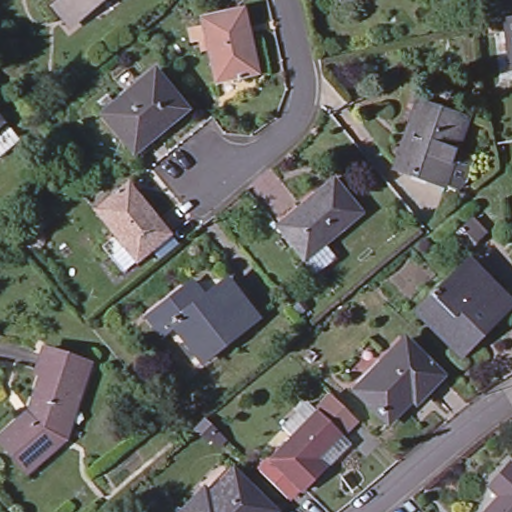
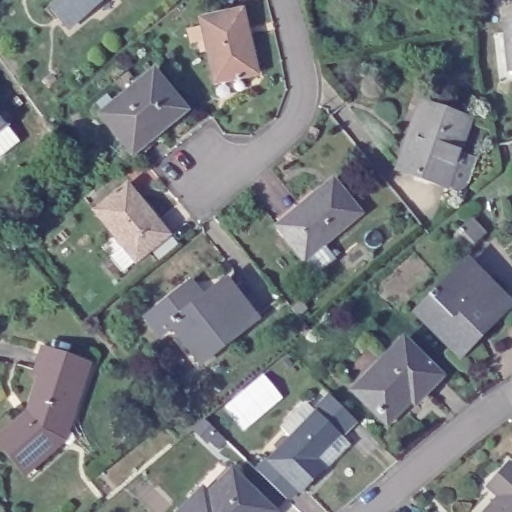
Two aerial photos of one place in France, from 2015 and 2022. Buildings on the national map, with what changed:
unchanged [(81,14),(69,0),(98,0),(90,7),(81,14)]
unchanged [(216,80),(202,19),(241,9),(256,70),(216,80)]
unchanged [(500,20),(512,19),(512,70),(506,70),(500,20)]
unchanged [(180,114),(150,138),(144,130),(120,148),(95,119),(148,75),(180,114)]
unchanged [(446,184),(398,168),(407,144),(409,143),(415,126),(413,125),(421,103),(469,119),(446,184)]
unchanged [(0,129),(0,115),(7,124),(0,129)]
unchanged [(360,211),(305,257),(278,224),(334,178),(360,211)]
unchanged [(167,232),(136,258),(96,210),(127,184),(167,232)]
unchanged [(503,300),(470,333),(476,338),(460,354),(422,315),(437,300),(430,294),(435,289),(437,292),(466,263),(503,300)]
unchanged [(200,365),(172,329),(167,333),(154,316),(179,296),(186,305),(197,297),(202,302),(226,284),(256,322),(200,365)]
unchanged [(414,401),(409,396),(401,404),(402,406),(387,423),(353,391),(402,340),(439,375),(414,401)]
unchanged [(5,449),(32,426),(28,424),(44,378),(39,376),(46,354),(87,367),(75,405),(70,404),(55,449),(25,473),(5,449)]
unchanged [(274,454),(320,407),(342,429),(319,453),(327,462),(305,485),(301,481),(290,493),(262,466),(274,454)]
unchanged [(512,512),(484,512),(499,496),(487,486),(509,462),(512,465),(512,512)]
unchanged [(194,497),(202,504),(217,489),(215,487),(232,471),(274,511),(273,512),(179,512),(194,497)]

